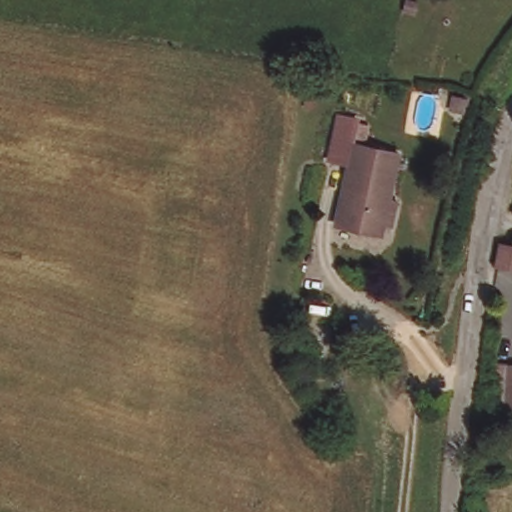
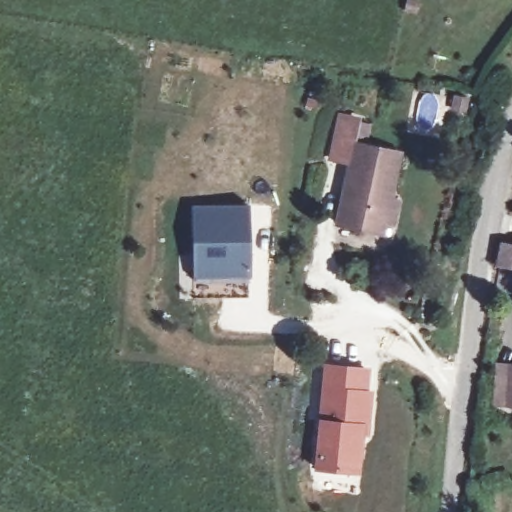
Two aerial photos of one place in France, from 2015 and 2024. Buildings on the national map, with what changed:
unchanged [(397,220),(390,218),(387,229),(341,219),(355,158),(337,154),(346,112),(365,116),(360,139),(405,148),(395,194),(402,196),(397,220)]
new [(209,270),(210,276),(194,276),(193,208),(246,205),(247,222),(227,223),(227,268),(209,270)]
unchanged [(502,247),(512,249),(512,266),(498,264),(502,247)]
new [(364,434),(359,475),(314,469),(325,364),(369,369),(366,392),(371,393),(367,435),(364,434)]
unchanged [(504,409),(505,371),(512,371),(512,409),(504,409)]

